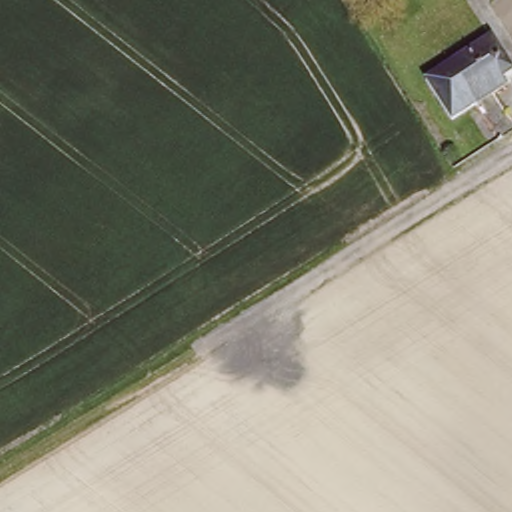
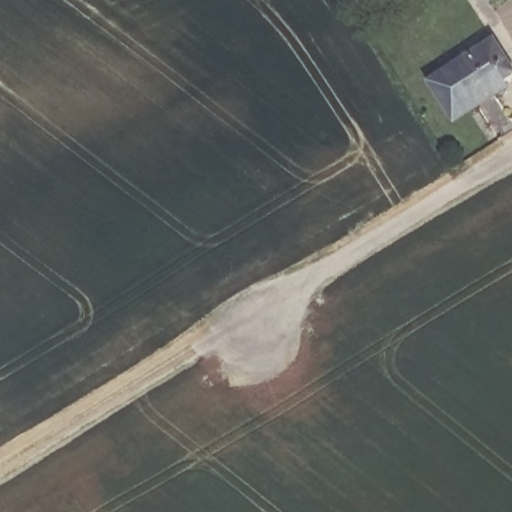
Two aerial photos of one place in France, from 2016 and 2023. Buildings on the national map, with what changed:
unchanged [(450,123),(422,80),(476,44),(492,34),(512,67),(512,72),(500,79),(504,88),(495,93),(475,106),(450,123)]

